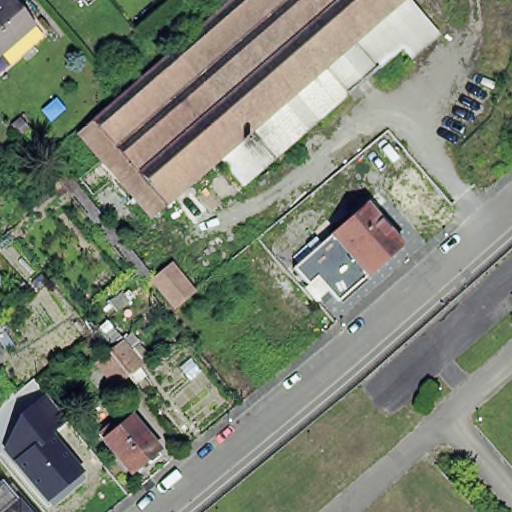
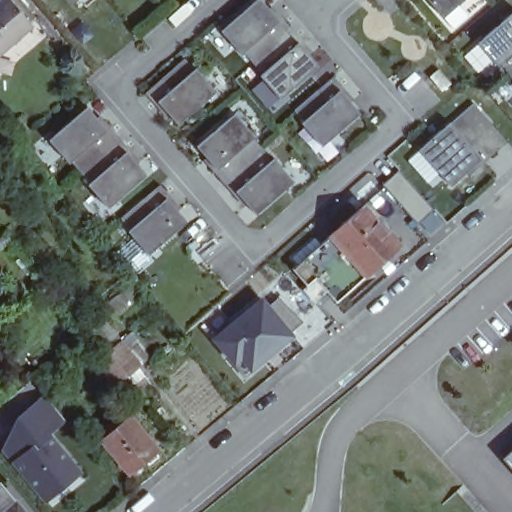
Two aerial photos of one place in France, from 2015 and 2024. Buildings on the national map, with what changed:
unchanged [(72,5),(67,0),(77,0),(72,5)]
demolished [(403,1),(403,0),(405,2),(426,27),(427,27),(428,29),(427,30),(436,40),(410,63),(400,54),(373,76),(322,121),(240,190),(219,165),(151,222),(77,139),(220,15),(212,5),(218,0),(225,0),(230,6),(237,0),(402,0),(403,1)]
new [(222,31),(257,0),(262,0),(291,32),(252,66),(222,31)]
new [(429,0),(465,0),(445,18),(429,0)]
unchanged [(2,5),(27,35),(0,59),(0,8),(2,5)]
new [(498,66),(478,42),(512,13),(512,77),(501,64),(498,66)]
new [(252,66),(291,32),(320,65),(282,99),(252,66)]
new [(178,125),(157,102),(147,91),(186,58),(197,69),(217,91),(178,125)]
new [(322,147),(302,125),(292,112),(330,79),(342,90),(362,113),(322,147)]
new [(470,175),(468,172),(452,186),(420,149),(450,122),(451,122),(473,102),(493,124),(508,141),(470,175)]
new [(50,140),(88,106),(118,141),(80,175),(50,140)]
new [(197,146),(236,113),(267,147),(227,180),(197,146)]
new [(80,175),(118,141),(148,175),(109,208),(80,175)]
new [(227,180),(267,147),(295,181),(257,215),(227,180)]
new [(419,224),(383,184),(399,170),(435,210),(419,224)]
new [(150,255),(127,230),(120,220),(162,184),(181,205),(177,210),(187,221),(150,255)]
unchanged [(331,235),(364,205),(400,245),(367,275),(331,235)]
unchanged [(315,293),(307,285),(306,283),(293,268),(331,235),(367,275),(337,301),(328,291),(323,286),(315,293)]
demolished [(167,270),(168,268),(185,255),(207,281),(189,297),(167,271),(167,270)]
new [(245,374),(222,345),(240,331),(233,323),(269,295),(275,302),(269,307),(292,335),(245,374)]
unchanged [(96,362),(108,352),(92,332),(100,327),(115,346),(120,343),(139,366),(127,376),(115,385),(96,362)]
demolished [(380,410),(363,390),(372,382),(389,401),(380,410)]
new [(18,417),(45,396),(66,423),(53,434),(84,473),(47,503),(12,460),(2,450),(18,417)]
unchanged [(159,455),(156,457),(159,460),(149,469),(147,466),(131,479),(102,444),(98,439),(112,427),(117,432),(130,420),(159,455)]
demolished [(18,448),(30,460),(32,458),(42,470),(25,484),(5,460),(18,448)]
new [(512,454),(512,471),(504,461),(512,454)]
unchanged [(2,485),(17,502),(24,512),(0,512),(0,487),(2,485)]

